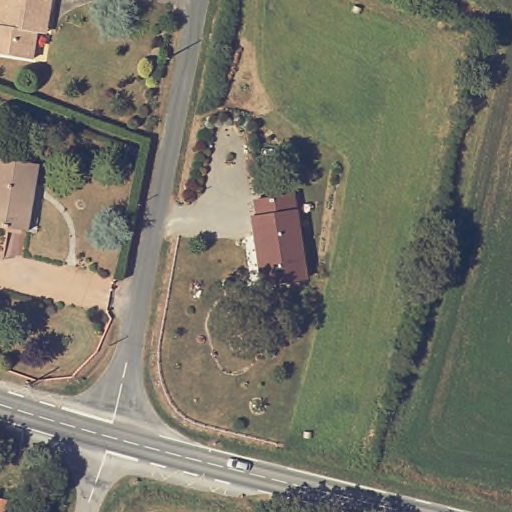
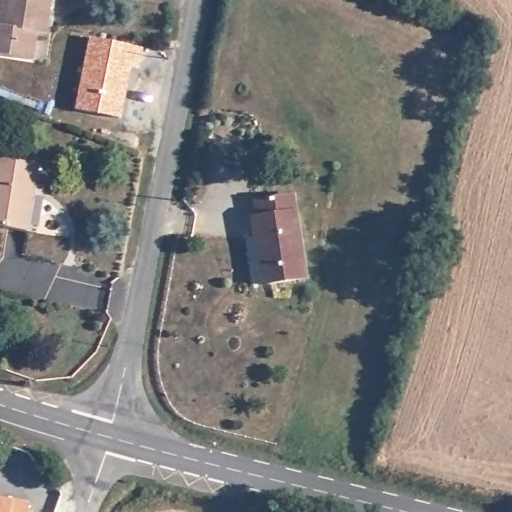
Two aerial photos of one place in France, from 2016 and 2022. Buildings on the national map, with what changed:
unchanged [(39,34),(35,61),(0,56),(0,0),(53,0),(48,35),(39,34)]
new [(89,37),(142,47),(139,70),(131,68),(120,118),(74,110),(89,37)]
unchanged [(0,230),(0,159),(39,165),(29,234),(0,230)]
unchanged [(248,220),(253,219),(252,201),(292,197),(305,281),(259,287),(248,220)]
unchanged [(5,512),(0,512),(0,498),(7,500),(5,512)]

